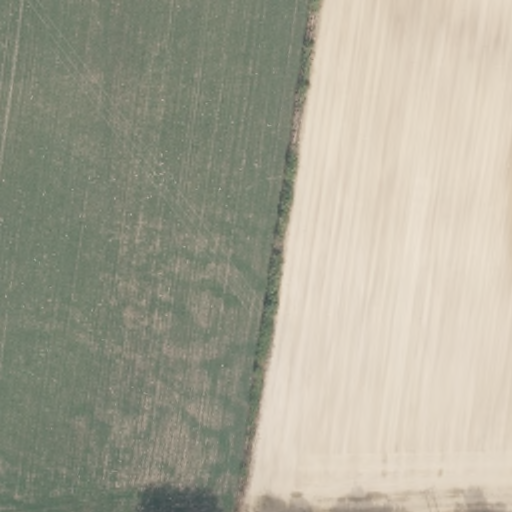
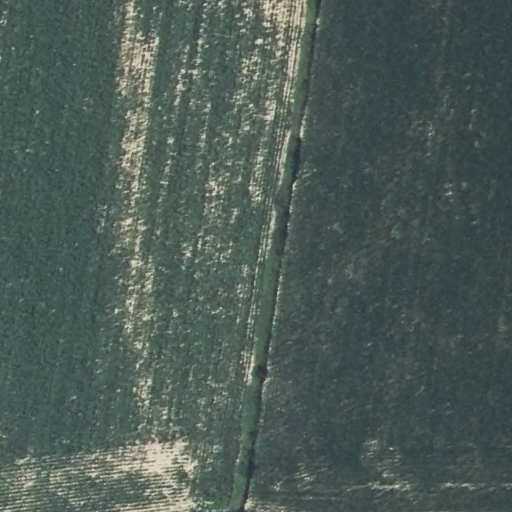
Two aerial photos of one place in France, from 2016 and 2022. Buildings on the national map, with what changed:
[]

